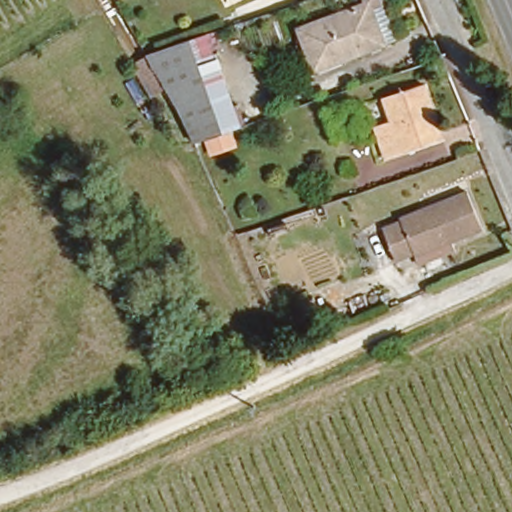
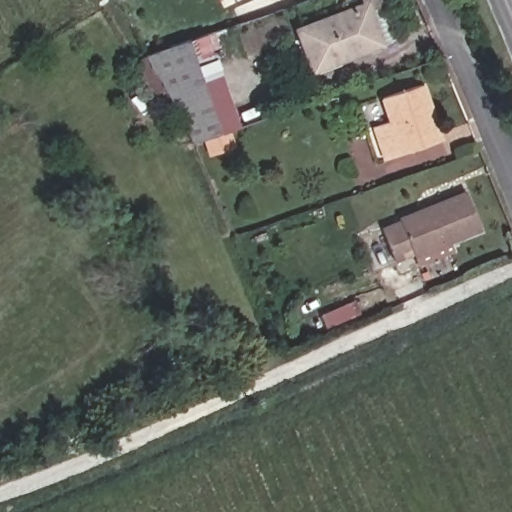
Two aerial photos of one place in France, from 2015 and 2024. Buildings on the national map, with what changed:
unchanged [(291,27),(358,1),(360,4),(372,0),(373,0),(387,36),(374,41),(306,67),(291,27)]
unchanged [(242,126),(235,129),(239,150),(208,156),(205,142),(196,145),(168,94),(153,101),(132,64),(150,54),(212,30),(242,126)]
unchanged [(373,130),(392,124),(384,102),(425,90),(440,132),(402,147),(401,154),(383,162),(373,130)]
unchanged [(402,215),(400,211),(468,187),(481,220),(395,254),(384,223),(402,215)]

